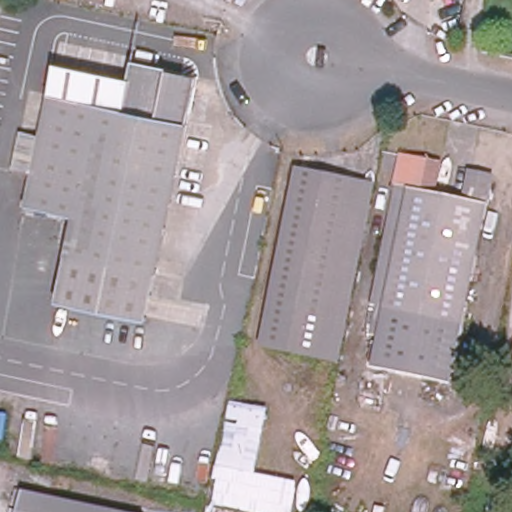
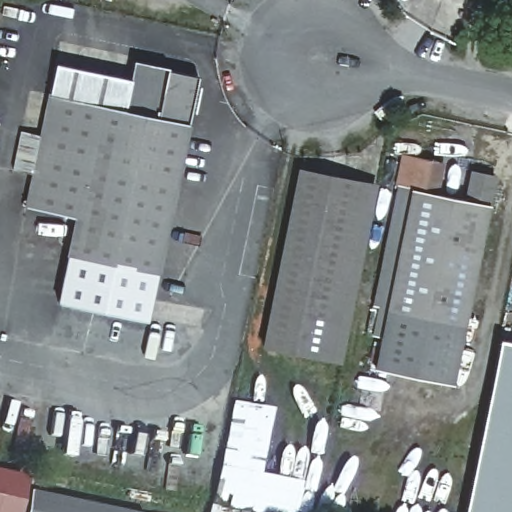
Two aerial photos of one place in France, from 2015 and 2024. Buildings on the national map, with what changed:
unchanged [(154,325),(61,306),(70,259),(78,221),(29,211),(36,178),(17,174),(16,174),(25,135),(44,140),(59,67),(135,83),(139,65),(174,71),(173,74),(202,81),(193,127),(195,128),(154,325)]
unchanged [(402,155),(444,164),(437,194),(464,199),(470,171),(495,176),(452,384),(375,368),(381,337),(412,187),(396,184),(402,155)]
unchanged [(341,361),(321,357),(263,345),(299,169),(358,180),(377,184),(377,185),(341,361)]
unchanged [(381,337),(371,335),(377,306),(371,305),(396,184),(412,187),(381,337)]
new [(512,342),(512,512),(465,512),(500,340),(512,342)]
unchanged [(252,512),(210,504),(218,466),(231,400),(270,408),(257,473),(316,485),(311,512),(252,512)]
new [(24,476),(16,512),(0,512),(0,470),(24,476)]
unchanged [(121,512),(22,512),(26,491),(121,512)]

